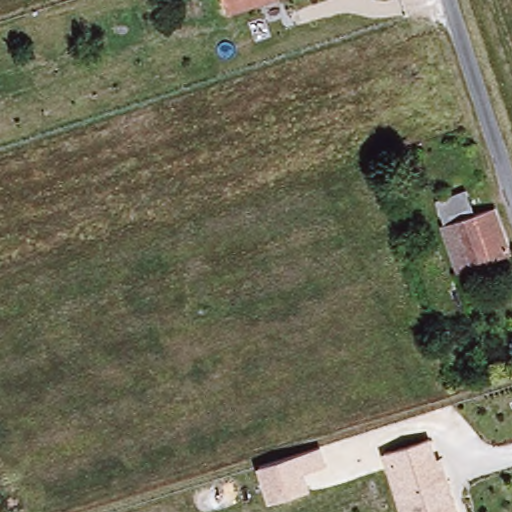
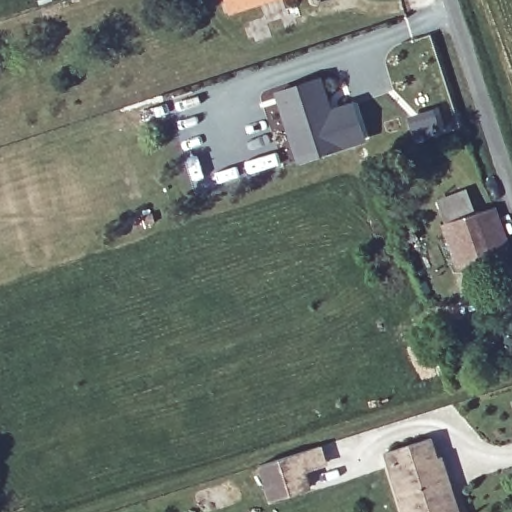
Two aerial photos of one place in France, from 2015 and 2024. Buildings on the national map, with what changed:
unchanged [(226,15),(222,0),(276,0),(226,15)]
new [(322,76),(331,107),(353,100),(365,141),(295,163),(273,91),(322,76)]
unchanged [(512,257),(463,269),(448,224),(498,210),(512,250),(512,257)]
unchanged [(424,439),(430,458),(435,457),(441,479),(441,480),(451,508),(452,512),(397,512),(377,452),(424,439)]
unchanged [(322,445),(329,466),(306,473),(312,490),(268,503),(258,465),(322,445)]

